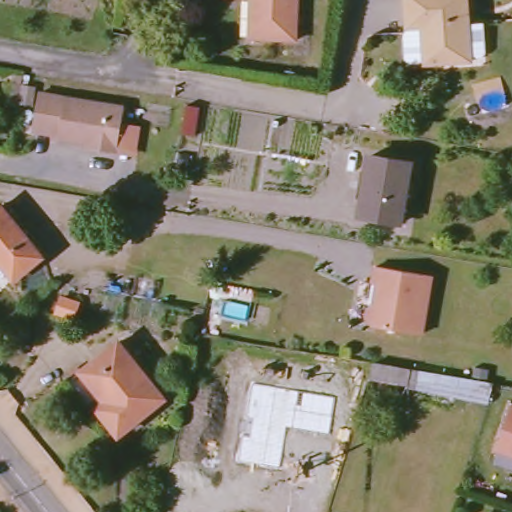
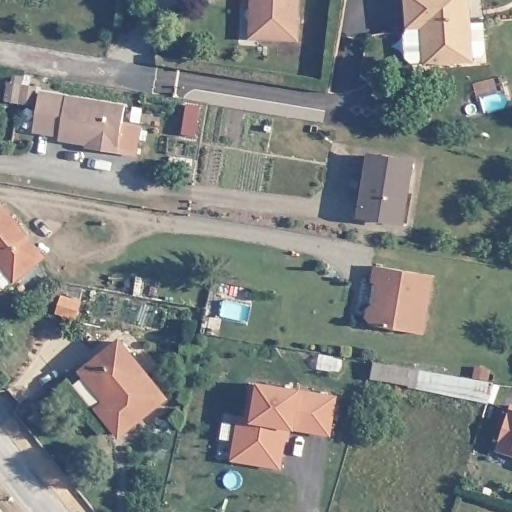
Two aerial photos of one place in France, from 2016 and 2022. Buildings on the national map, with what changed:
unchanged [(257,40),(258,0),(297,0),(295,42),(257,40)]
unchanged [(482,52),(470,54),(470,56),(425,61),(422,25),(409,25),(407,25),(405,0),(464,0),(467,20),(481,19),(485,48),(482,52)]
unchanged [(90,142),(60,137),(62,132),(35,127),(42,91),(127,104),(120,152),(100,150),(89,148),(90,142)]
unchanged [(418,162),(409,221),(406,223),(367,216),(375,156),(418,162)]
unchanged [(16,278),(12,275),(0,261),(0,213),(40,260),(16,278)]
unchanged [(437,275),(427,332),(375,323),(372,318),(374,306),(379,302),(382,282),(377,282),(380,265),(437,275)]
unchanged [(120,345),(165,401),(122,436),(108,417),(113,412),(83,373),(120,345)]
unchanged [(403,392),(406,385),(373,380),(376,363),(413,369),(496,385),(490,405),(403,392)]
new [(336,398),(329,434),(287,426),(280,467),(238,460),(243,435),(247,417),(253,384),(336,398)]
unchanged [(495,449),(498,441),(512,405),(512,455),(495,449)]

